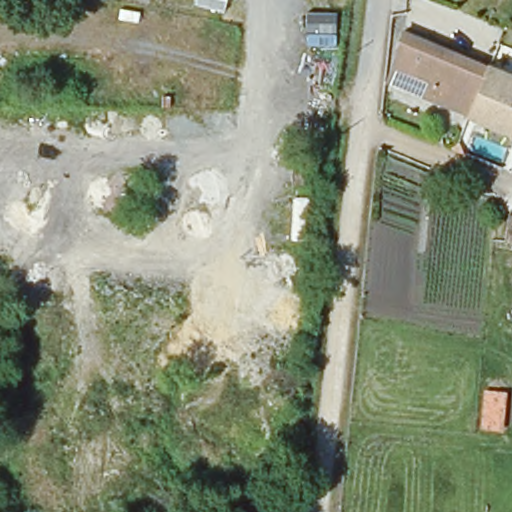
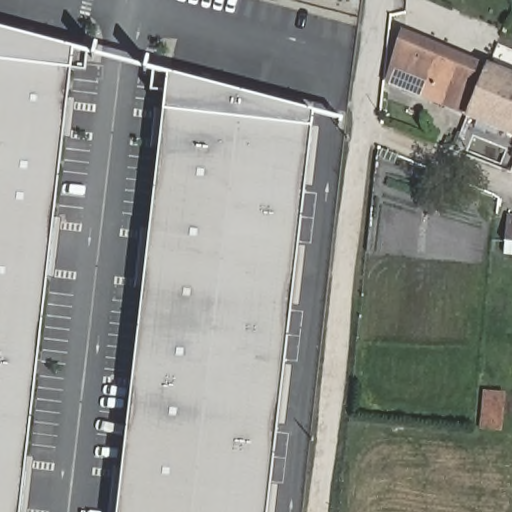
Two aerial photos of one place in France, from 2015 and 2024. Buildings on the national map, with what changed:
new [(30,512),(0,512),(0,28),(74,48),(89,52),(87,72),(71,71),(68,99),(77,100),(72,140),(64,139),(55,217),(63,219),(56,280),(48,278),(27,456),(36,457),(30,512)]
unchanged [(508,134),(471,117),(387,82),(406,35),(490,70),(512,79),(512,125),(508,134)]
new [(293,366),(286,427),(279,427),(272,485),(280,486),(277,512),(109,512),(114,466),(122,467),(143,290),(135,290),(142,228),(150,229),(159,150),(151,150),(155,109),(163,110),(165,94),(151,92),(153,70),(167,73),(344,120),(342,126),(340,125),(340,122),(314,115),(313,127),(321,127),(314,189),(306,188),(299,246),(307,247),(300,308),(292,307),(286,365),(293,366)]
unchanged [(508,134),(512,125),(512,135),(508,134)]
unchanged [(507,218),(512,218),(512,242),(505,242),(507,218)]

